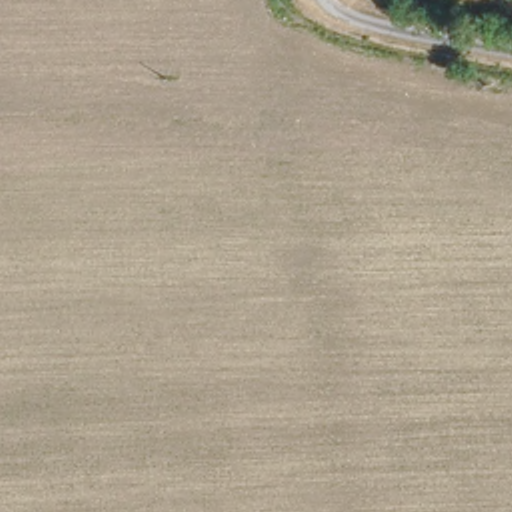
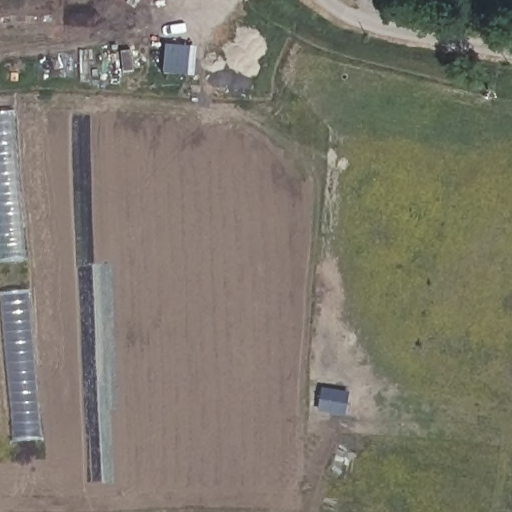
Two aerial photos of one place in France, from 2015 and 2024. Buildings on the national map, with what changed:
new [(13,115),(26,261),(0,262),(0,115),(13,115)]
new [(12,442),(0,315),(0,293),(28,292),(42,439),(12,442)]

